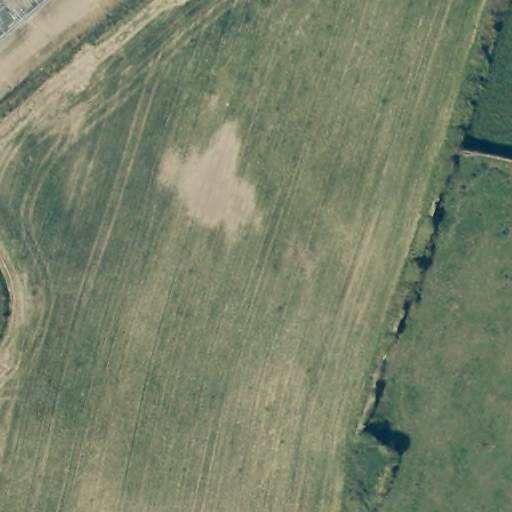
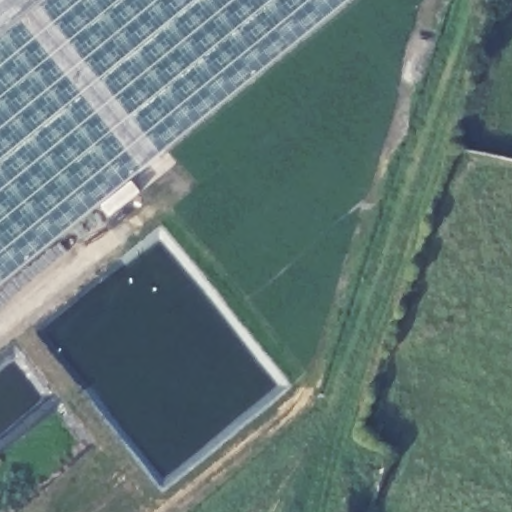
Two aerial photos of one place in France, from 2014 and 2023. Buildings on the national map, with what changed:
unchanged [(0,40),(0,0),(50,0),(0,40)]
new [(0,287),(0,40),(50,0),(350,0),(0,287)]

